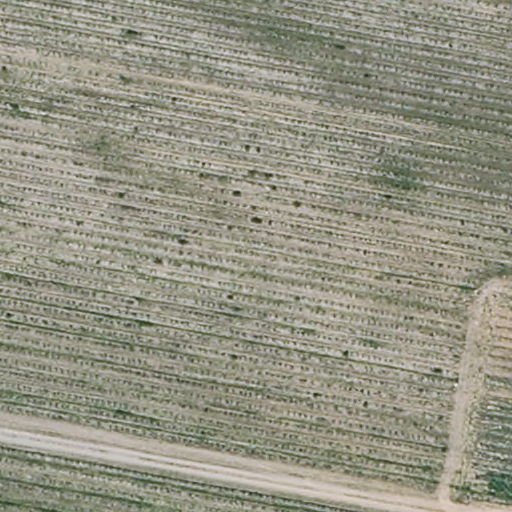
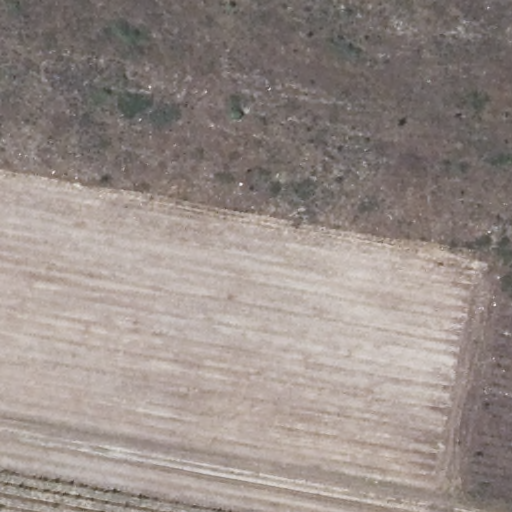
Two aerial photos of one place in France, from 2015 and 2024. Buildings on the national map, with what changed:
[]

